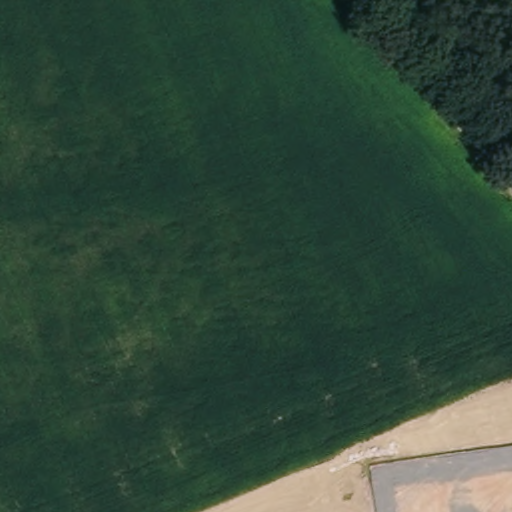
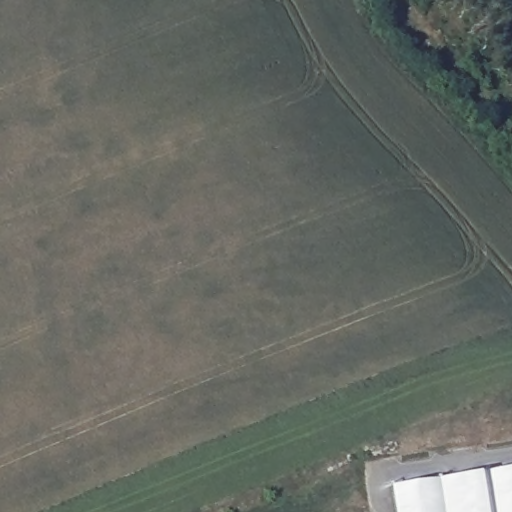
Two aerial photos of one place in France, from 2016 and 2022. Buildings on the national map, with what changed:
new [(392,485),(512,467),(512,512),(395,512),(392,485)]

